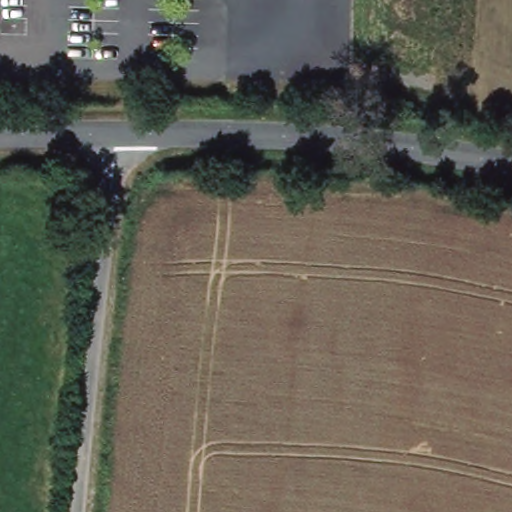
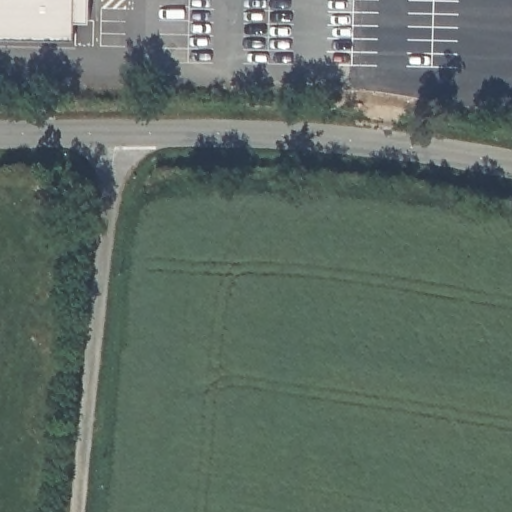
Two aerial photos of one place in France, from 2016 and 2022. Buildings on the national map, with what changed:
new [(73,27),(0,26),(0,0),(89,0),(88,19),(74,18),(73,27)]

